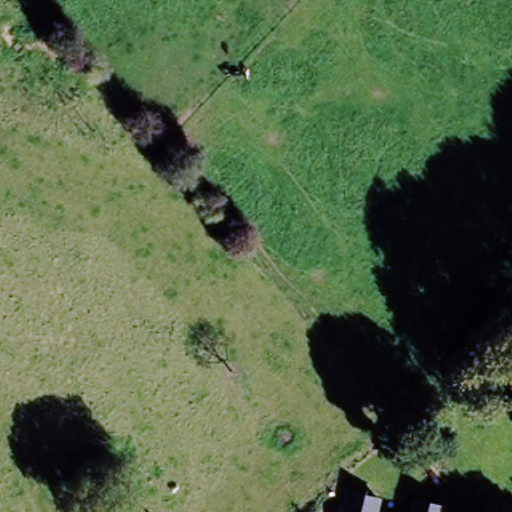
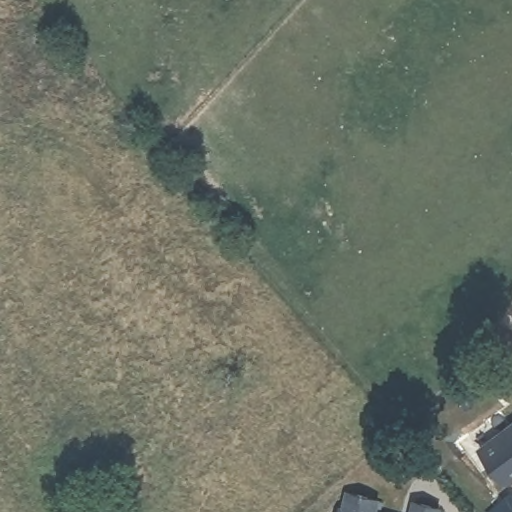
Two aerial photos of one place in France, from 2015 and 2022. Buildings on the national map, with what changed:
new [(476,450),(512,421),(512,483),(505,489),(476,450)]
unchanged [(448,512),(342,512),(347,487),(450,501),(448,512)]

